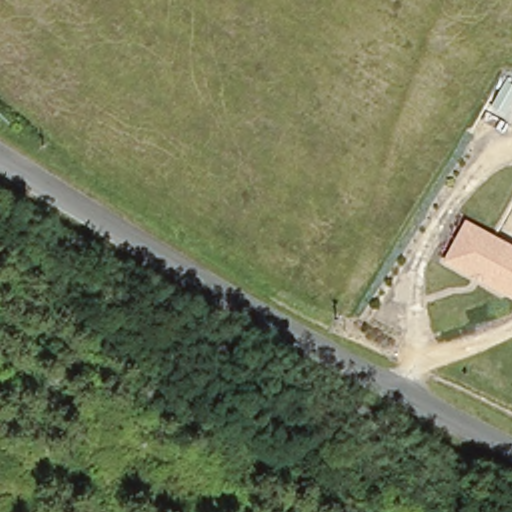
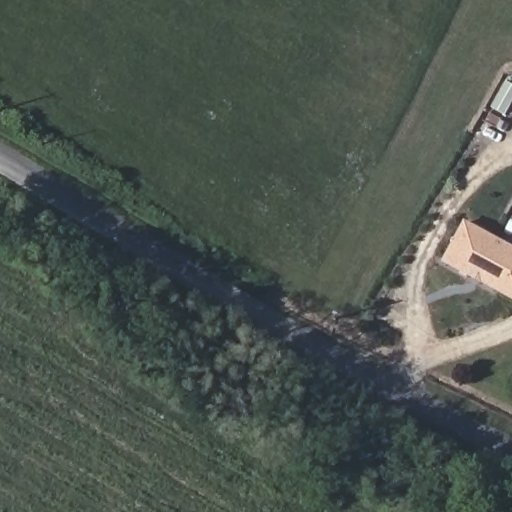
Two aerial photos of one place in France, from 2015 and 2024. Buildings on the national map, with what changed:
unchanged [(460,222),(512,250),(512,299),(440,261),(460,222)]

